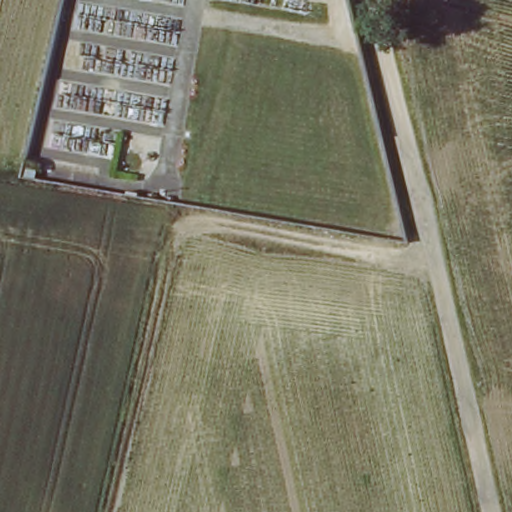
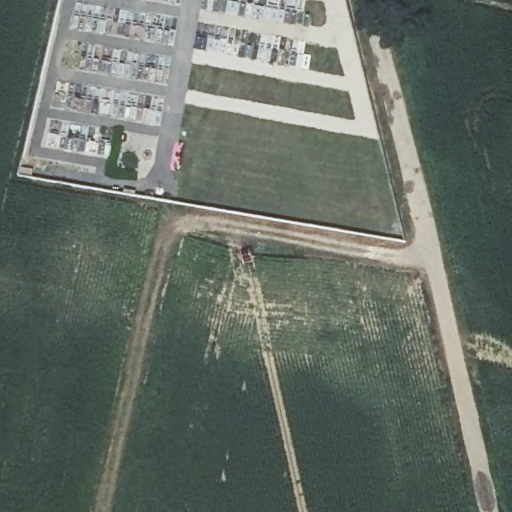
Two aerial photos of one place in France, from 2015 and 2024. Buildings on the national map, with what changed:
[]

